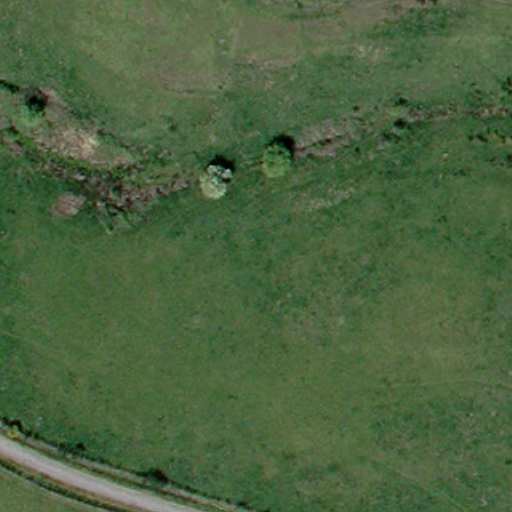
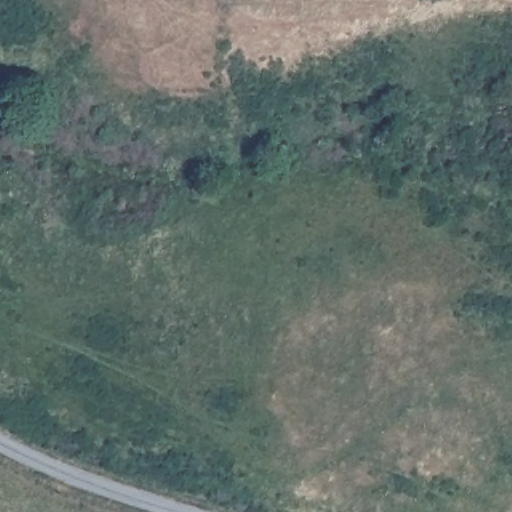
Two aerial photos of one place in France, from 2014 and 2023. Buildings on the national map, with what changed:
[]

